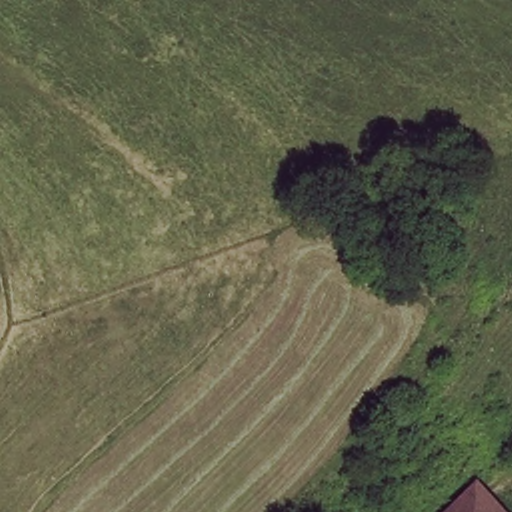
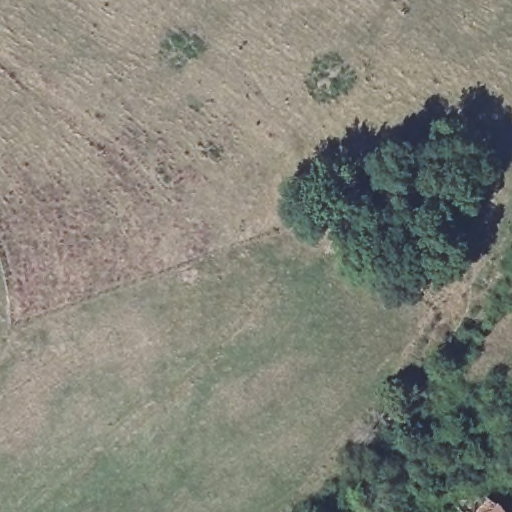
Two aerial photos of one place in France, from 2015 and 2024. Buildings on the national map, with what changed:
unchanged [(498,512),(445,512),(473,484),(498,512)]

